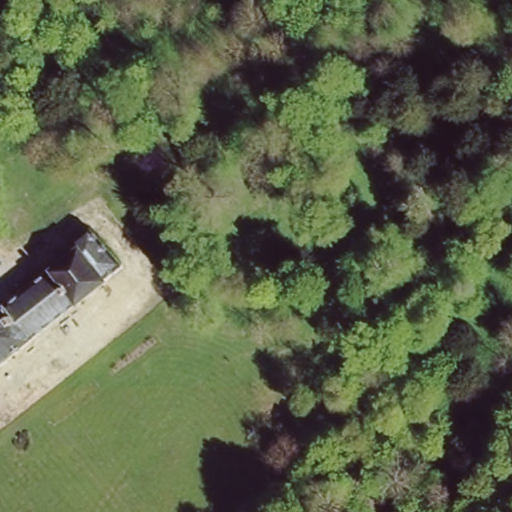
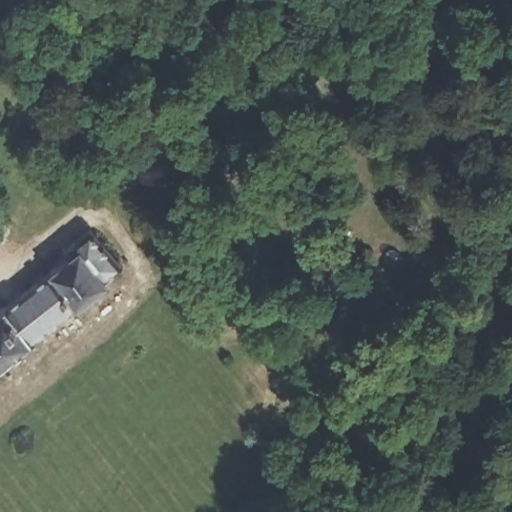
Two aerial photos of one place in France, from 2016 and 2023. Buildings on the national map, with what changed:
unchanged [(67,258),(63,251),(90,230),(120,269),(32,339),(0,365),(0,311),(67,258)]

